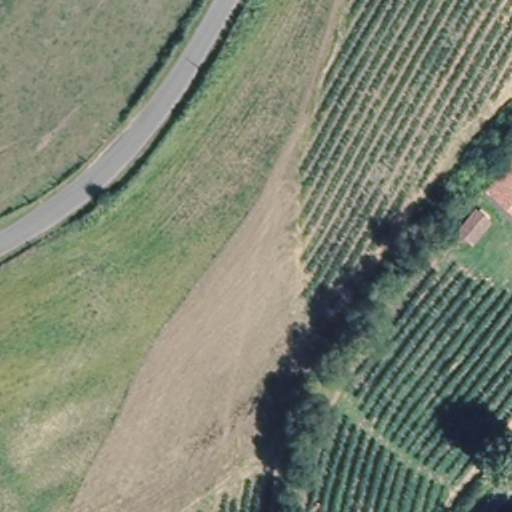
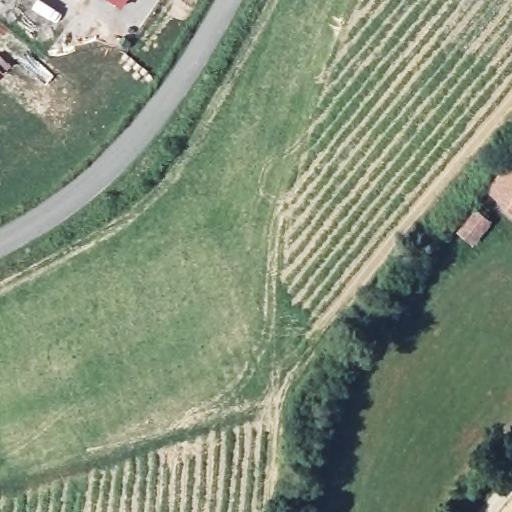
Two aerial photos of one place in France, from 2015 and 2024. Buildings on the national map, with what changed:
new [(120,8),(109,0),(126,0),(120,8)]
unchanged [(489,191),(512,163),(512,210),(489,191)]

